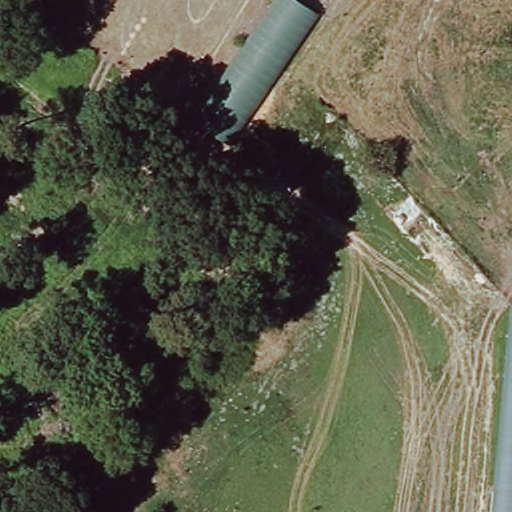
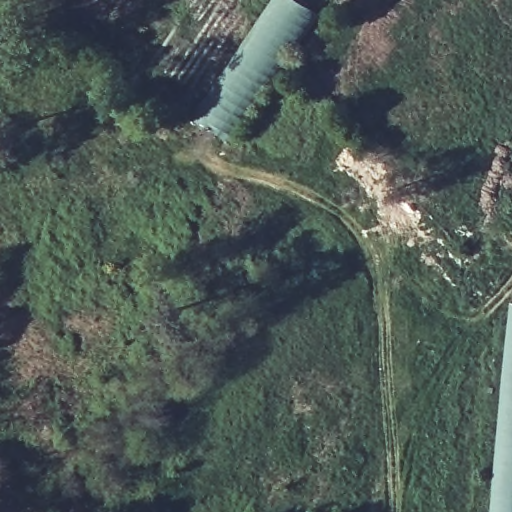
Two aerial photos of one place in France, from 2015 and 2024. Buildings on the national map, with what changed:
unchanged [(231,146),(194,120),(272,0),(300,0),(318,12),(231,146)]
unchanged [(512,512),(495,512),(512,332),(512,512)]

